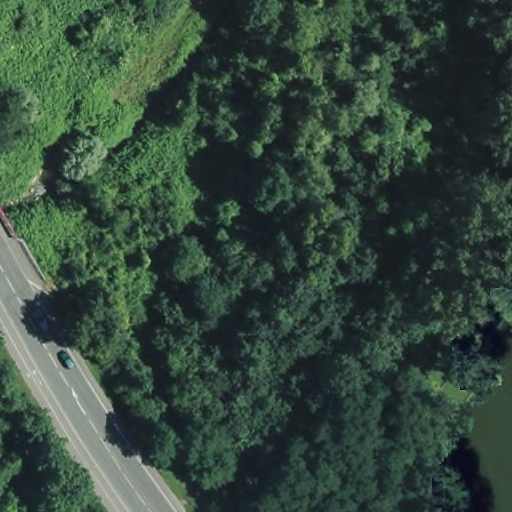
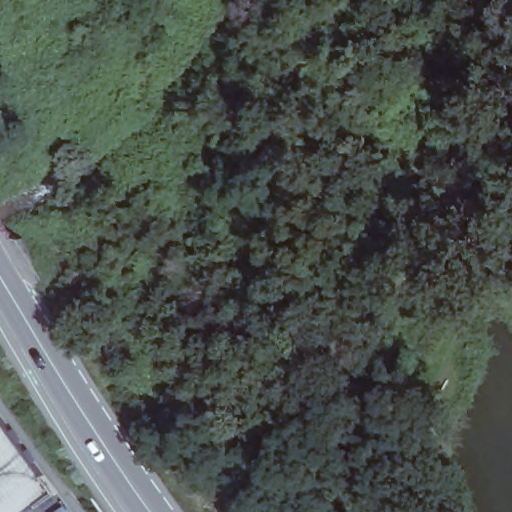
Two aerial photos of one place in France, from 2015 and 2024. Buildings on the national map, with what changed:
new [(50,490),(21,512),(0,512),(0,427),(50,490)]

